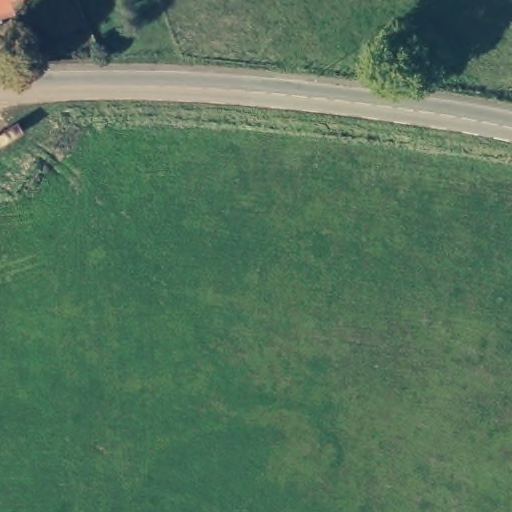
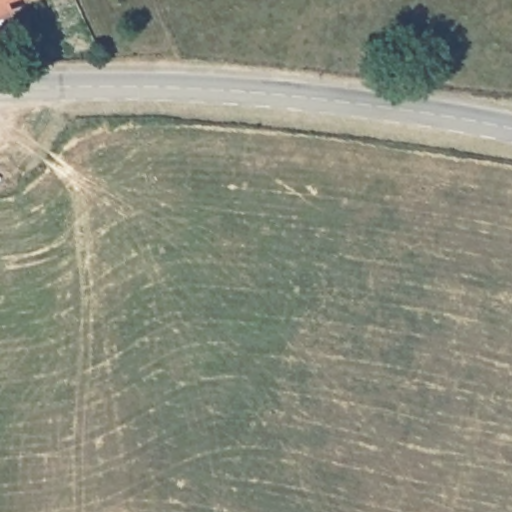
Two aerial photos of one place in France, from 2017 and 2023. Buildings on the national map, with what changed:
unchanged [(0,19),(0,0),(14,0),(19,13),(0,19)]

